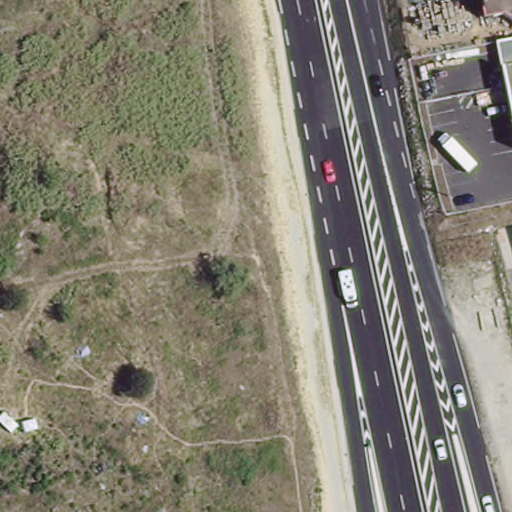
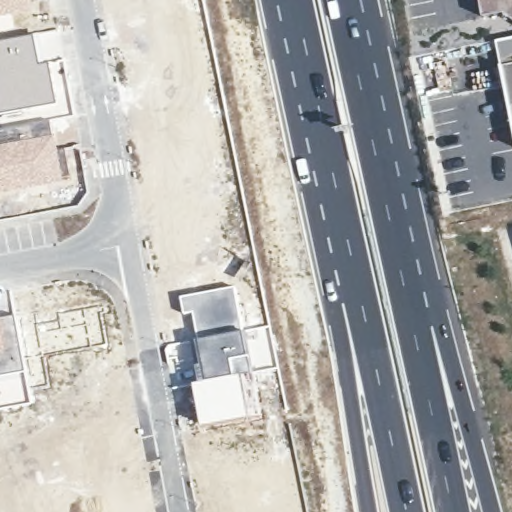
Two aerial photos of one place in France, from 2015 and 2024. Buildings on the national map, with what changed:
new [(0,16),(0,0),(28,0),(31,11),(0,16)]
unchanged [(487,19),(483,0),(512,0),(512,18),(507,15),(487,19)]
new [(33,31),(40,61),(49,59),(57,104),(0,114),(0,39),(33,31)]
new [(494,42),(512,39),(512,64),(499,67),(494,42)]
unchanged [(512,64),(512,131),(499,67),(512,64)]
new [(54,133),(64,178),(11,191),(0,193),(0,143),(54,133)]
new [(235,285),(245,328),(253,373),(244,375),(203,380),(191,313),(183,315),(179,295),(235,285)]
new [(1,318),(8,354),(0,356),(0,315),(1,318)]
new [(8,354),(1,318),(14,315),(26,371),(0,376),(0,356),(8,354)]
new [(203,380),(244,375),(248,391),(251,418),(201,427),(192,383),(203,380)]

